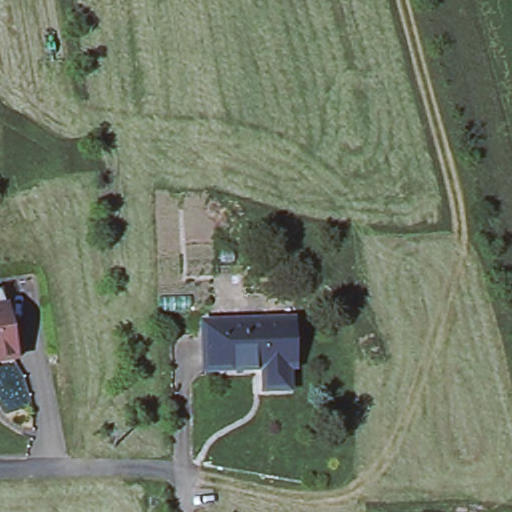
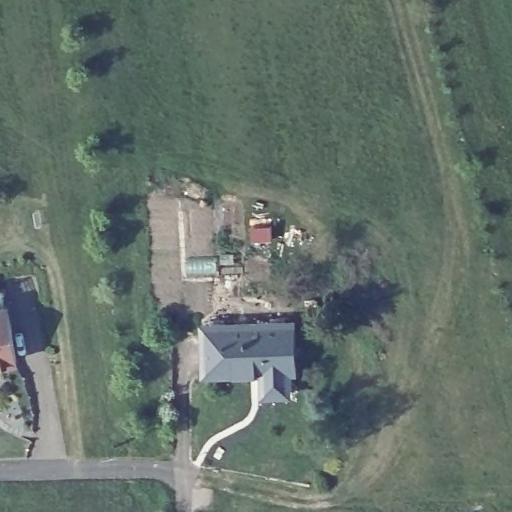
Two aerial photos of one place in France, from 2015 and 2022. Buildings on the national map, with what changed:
unchanged [(0,301),(3,301),(6,319),(15,368),(0,371),(0,301)]
unchanged [(203,323),(291,322),(291,367),(288,367),(288,394),(264,395),(263,372),(204,372),(203,323)]

